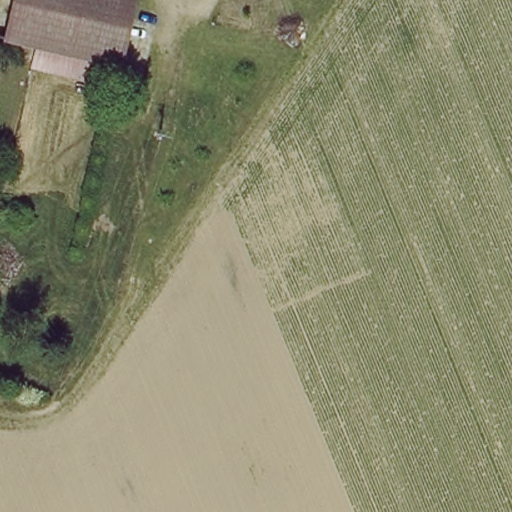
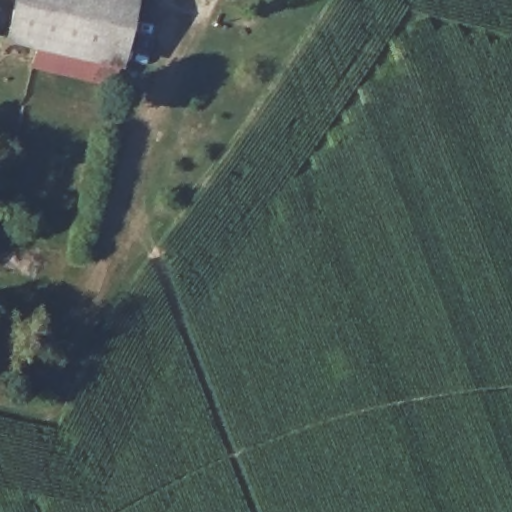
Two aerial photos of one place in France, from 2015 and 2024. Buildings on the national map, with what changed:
unchanged [(129,0),(118,56),(5,37),(14,0),(129,0)]

